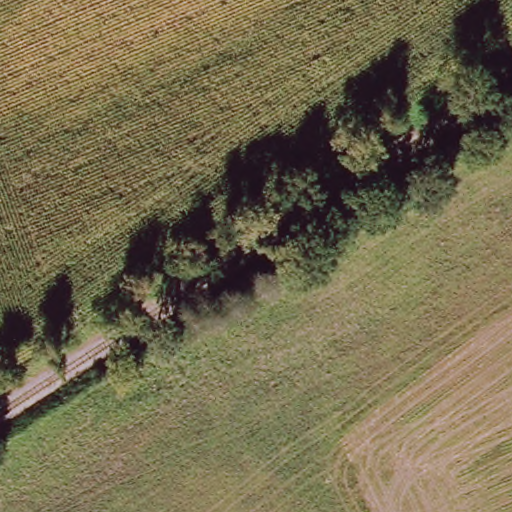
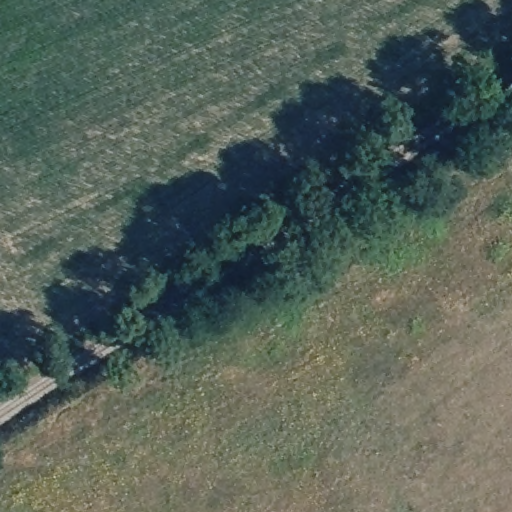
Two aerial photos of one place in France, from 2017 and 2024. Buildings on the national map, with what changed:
[]

